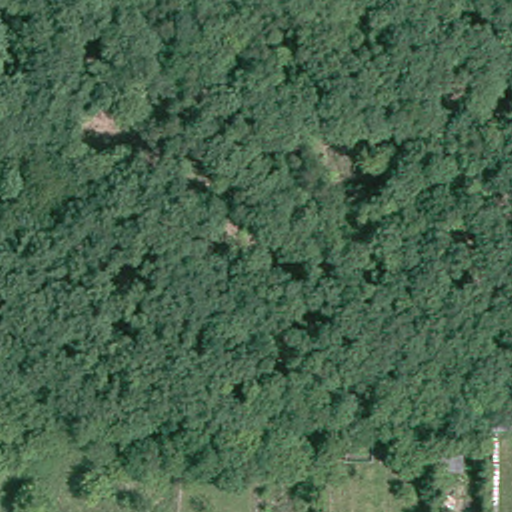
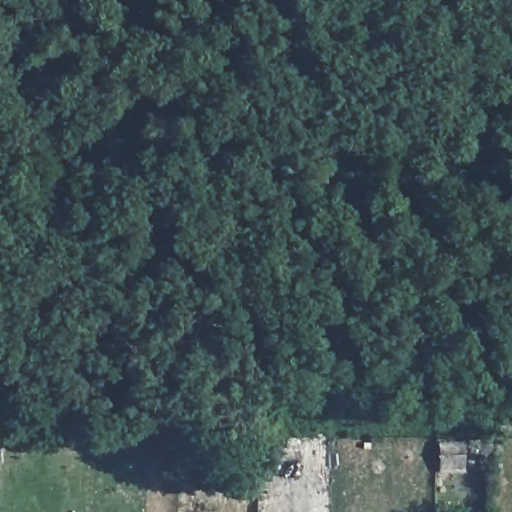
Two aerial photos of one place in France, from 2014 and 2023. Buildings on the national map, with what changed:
unchanged [(470,437),(467,472),(442,471),(440,441),(470,437)]
unchanged [(469,512),(442,512),(442,493),(469,494),(469,512)]

